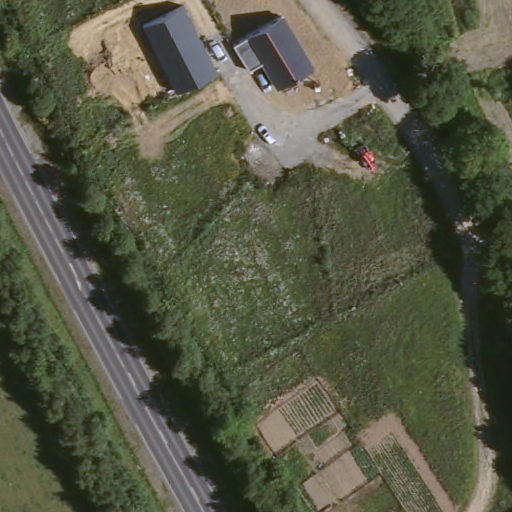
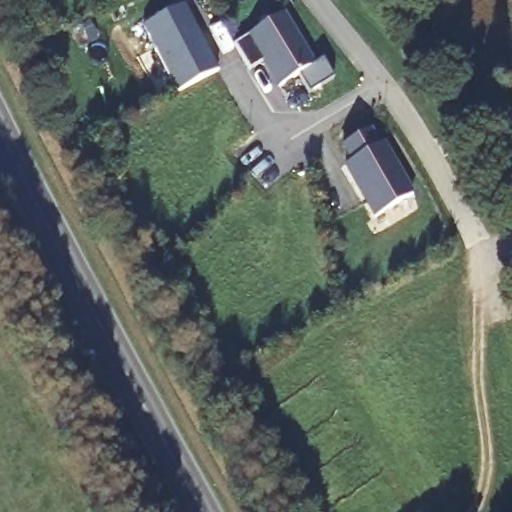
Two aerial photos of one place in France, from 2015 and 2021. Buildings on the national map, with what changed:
unchanged [(220,69),(179,90),(144,24),(183,4),(220,69)]
unchanged [(317,64),(279,87),(262,61),(248,70),(232,43),(285,11),(317,64)]
new [(322,60),(333,79),(308,95),(297,75),(317,64),(322,60)]
new [(342,167),(349,165),(339,147),(370,130),(380,145),(384,142),(414,195),(373,219),(342,167)]

